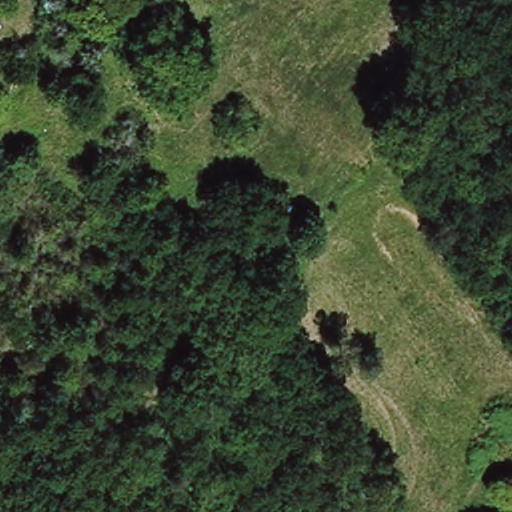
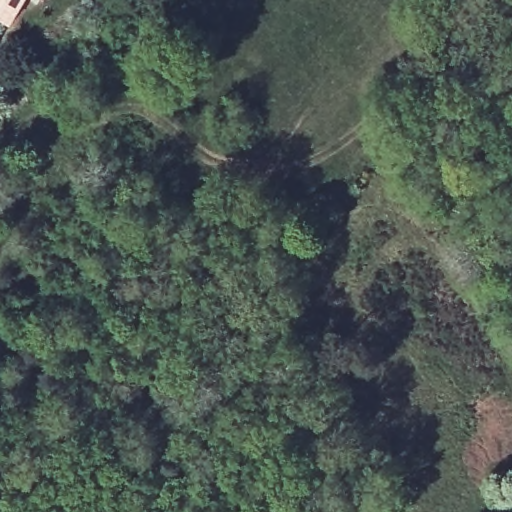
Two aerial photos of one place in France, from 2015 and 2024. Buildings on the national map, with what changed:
new [(13,24),(0,16),(0,0),(27,0),(13,24)]

